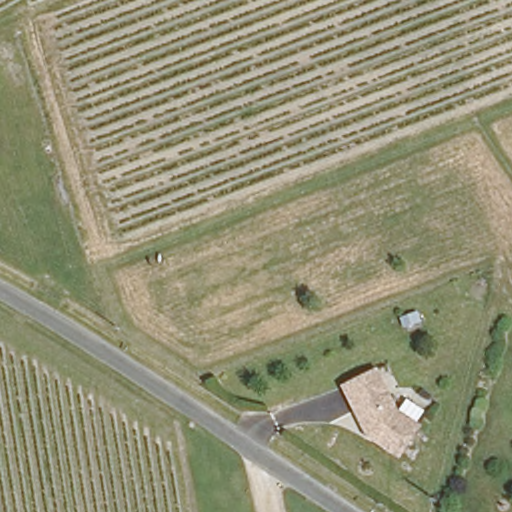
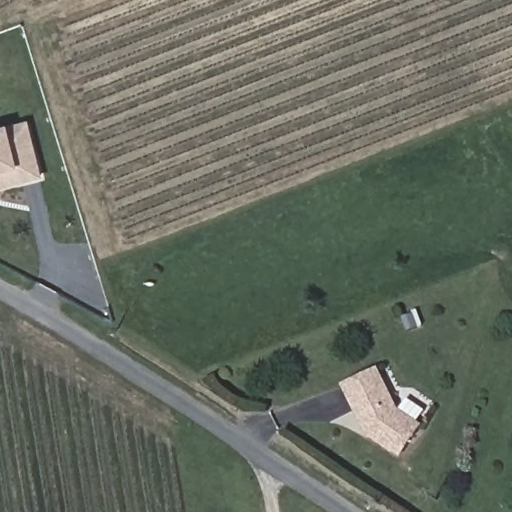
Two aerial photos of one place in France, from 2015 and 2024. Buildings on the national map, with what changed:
new [(0,189),(0,129),(10,126),(30,121),(45,179),(0,189)]
unchanged [(397,415),(420,435),(401,463),(373,442),(348,396),(377,381),(397,415)]

